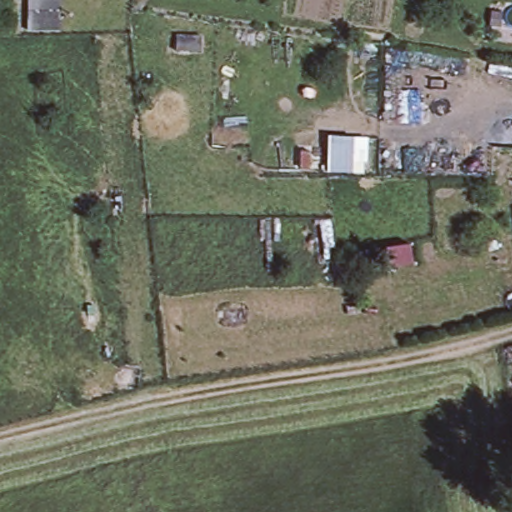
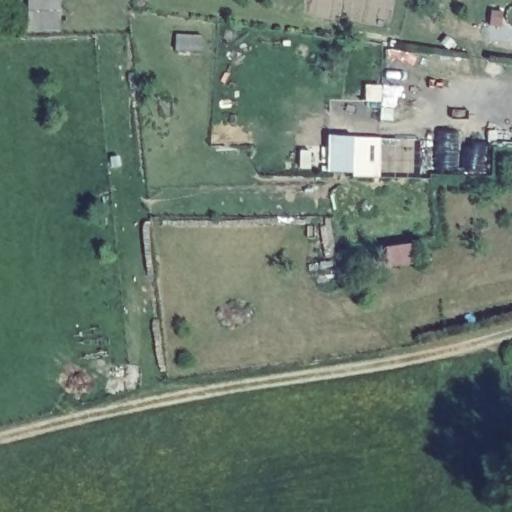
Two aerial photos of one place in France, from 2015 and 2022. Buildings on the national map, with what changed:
unchanged [(385,249),(405,246),(407,266),(389,268),(382,270),(380,250),(385,249)]

